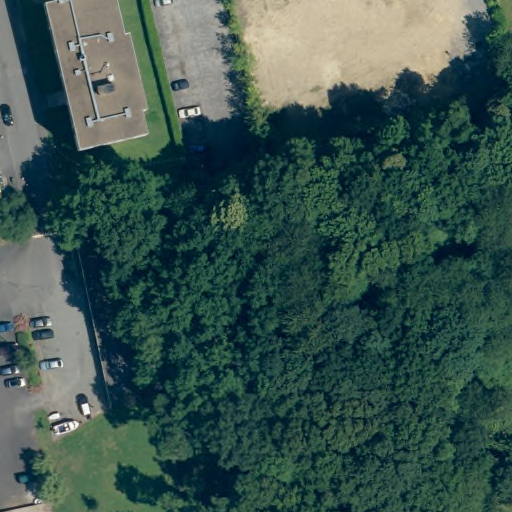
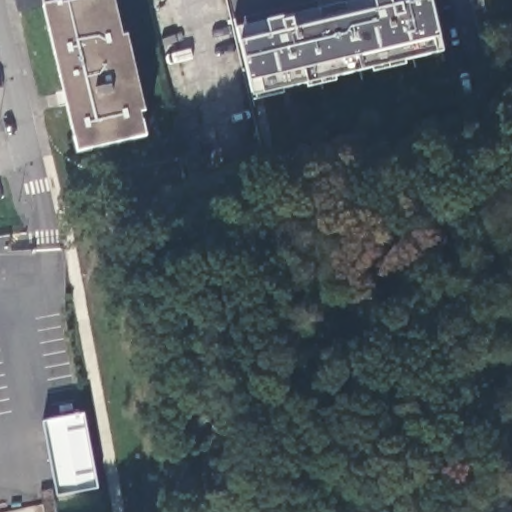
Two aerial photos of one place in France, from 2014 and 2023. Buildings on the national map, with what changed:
unchanged [(36,6),(59,0),(108,0),(117,36),(124,34),(143,110),(136,111),(142,134),(75,152),(36,6)]
new [(266,22),(293,16),(359,0),(432,0),(440,37),(443,51),(436,53),(263,93),(254,95),(250,84),(251,82),(241,42),(240,41),(237,28),(266,22)]
unchanged [(285,149),(280,130),(309,123),(314,142),(285,149)]
demolished [(71,238),(101,232),(136,398),(105,405),(71,238)]
new [(56,496),(41,421),(81,412),(96,487),(56,496)]

